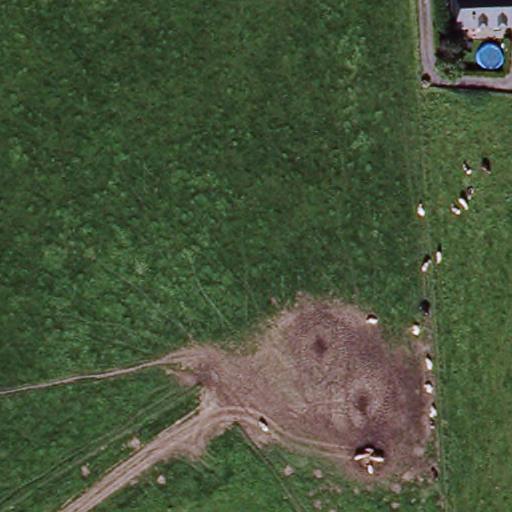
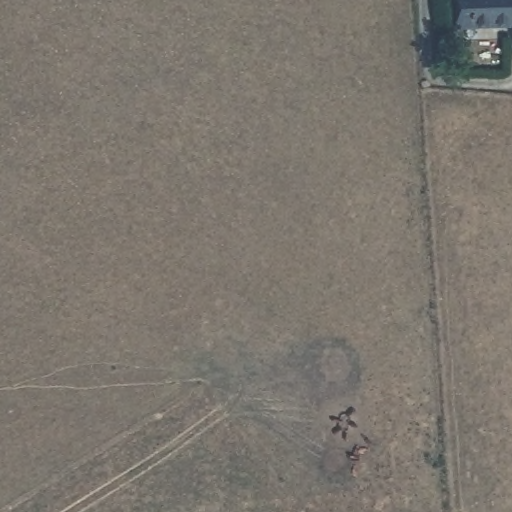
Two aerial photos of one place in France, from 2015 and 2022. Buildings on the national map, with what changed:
unchanged [(448,0),(512,0),(512,14),(511,28),(446,22),(448,0)]

